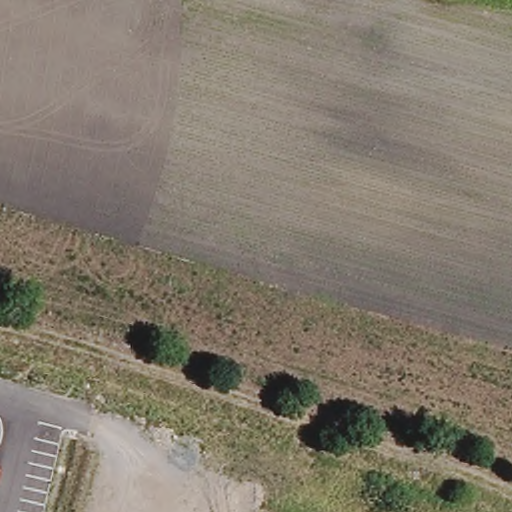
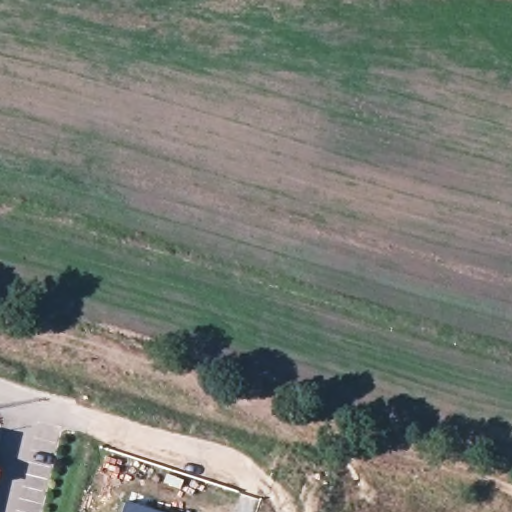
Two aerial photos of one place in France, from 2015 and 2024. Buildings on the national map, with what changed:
new [(165,512),(122,512),(126,500),(165,512)]

